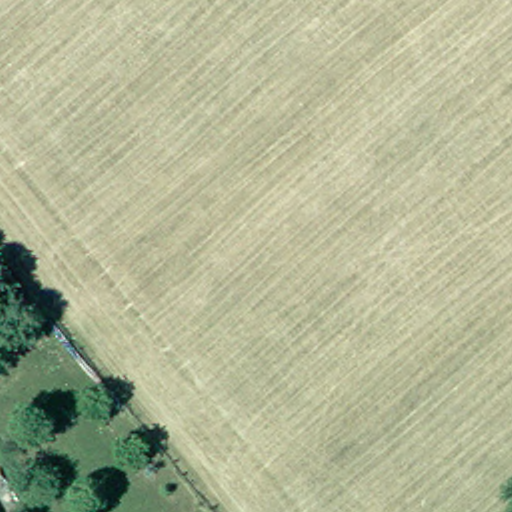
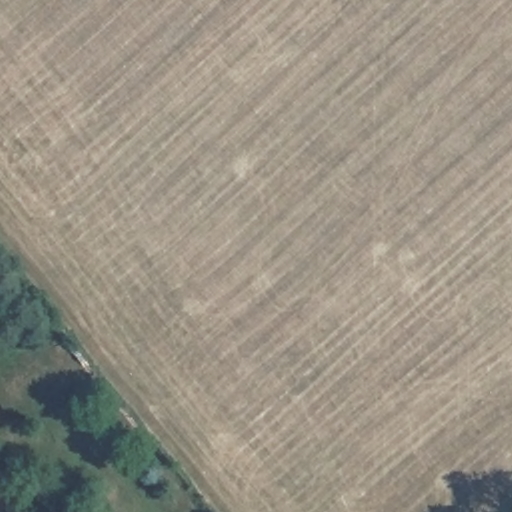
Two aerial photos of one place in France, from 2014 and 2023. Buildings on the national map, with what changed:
[]

